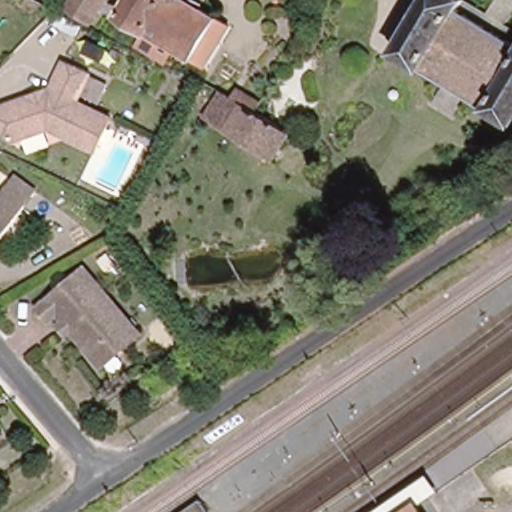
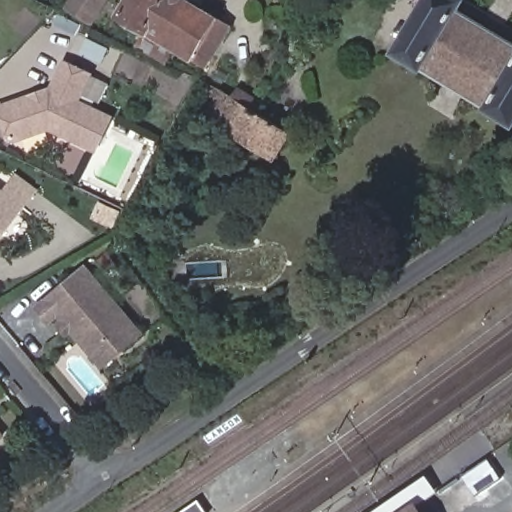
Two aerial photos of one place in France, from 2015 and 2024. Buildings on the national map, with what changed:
unchanged [(97,12),(78,0),(104,0),(97,12)]
unchanged [(122,0),(187,0),(212,15),(202,31),(214,39),(200,61),(117,9),(122,0)]
unchanged [(427,0),(463,0),(512,29),(512,125),(395,55),(427,0)]
unchanged [(88,71),(76,97),(108,113),(92,147),(46,125),(6,140),(0,124),(0,102),(27,92),(41,87),(48,85),(61,58),(88,71)]
unchanged [(258,107),(281,120),(276,128),(310,149),(295,172),(227,130),(241,108),(254,115),(258,107)]
unchanged [(31,191),(0,232),(0,184),(8,174),(31,191)]
unchanged [(91,353),(69,327),(64,331),(56,321),(61,318),(56,311),(47,318),(37,305),(82,267),(137,331),(119,346),(100,363),(91,353)]
unchanged [(403,512),(366,512),(426,471),(438,488),(417,502),(403,512)]
unchanged [(208,512),(183,512),(200,500),(208,512)]
unchanged [(423,512),(403,512),(417,502),(423,512)]

